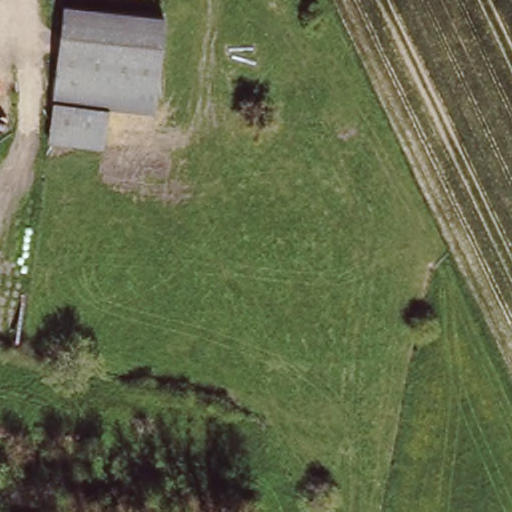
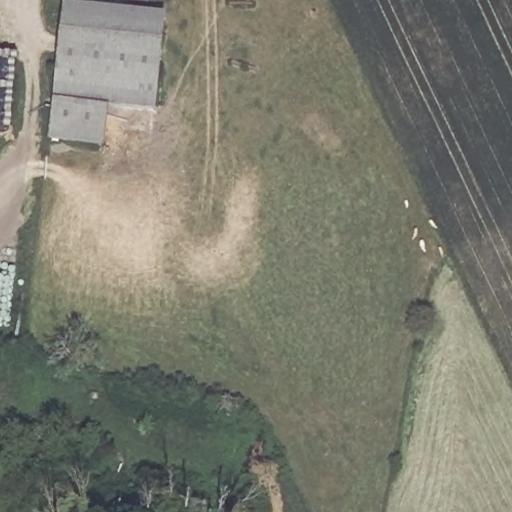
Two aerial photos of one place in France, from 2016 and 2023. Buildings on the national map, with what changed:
unchanged [(68,0),(167,11),(160,106),(110,103),(107,144),(55,138),(59,93),(68,0)]

